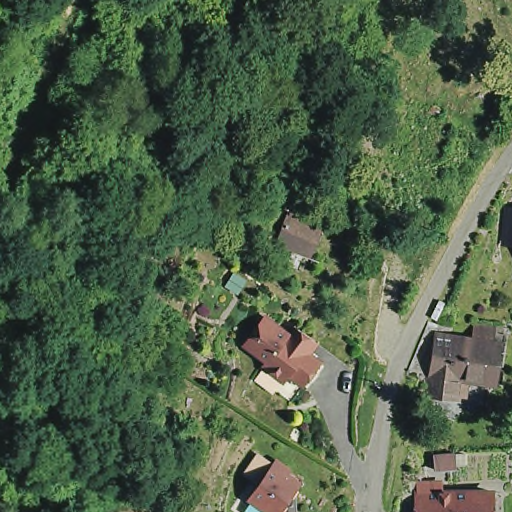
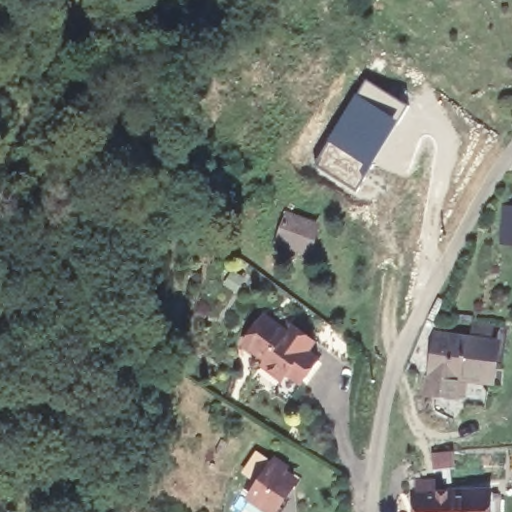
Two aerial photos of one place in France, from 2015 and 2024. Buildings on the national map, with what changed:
new [(365,77),(409,105),(356,192),(312,164),(365,77)]
unchanged [(512,211),(512,240),(503,237),(512,211)]
new [(324,227),(317,256),(277,245),(286,212),(324,227)]
unchanged [(292,393),(235,347),(263,306),(288,340),(295,326),(326,360),(292,393)]
unchanged [(435,377),(439,340),(457,342),(482,345),(484,328),(498,330),(496,347),(491,383),(463,380),(461,398),(432,395),(435,377)]
unchanged [(258,512),(238,485),(259,448),(300,485),(276,512),(258,512)]
unchanged [(438,487),(440,498),(450,498),(489,497),(490,512),(418,512),(417,500),(417,488),(438,487)]

